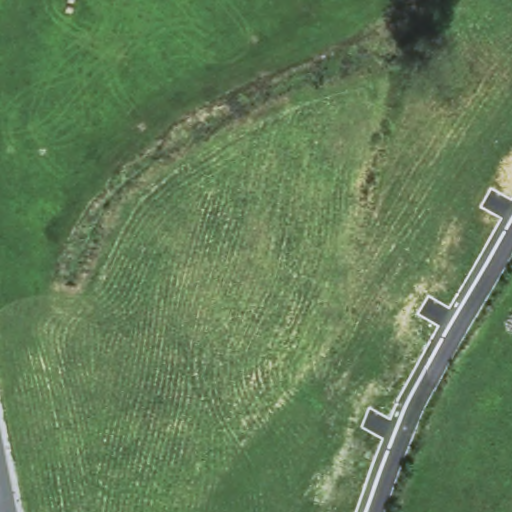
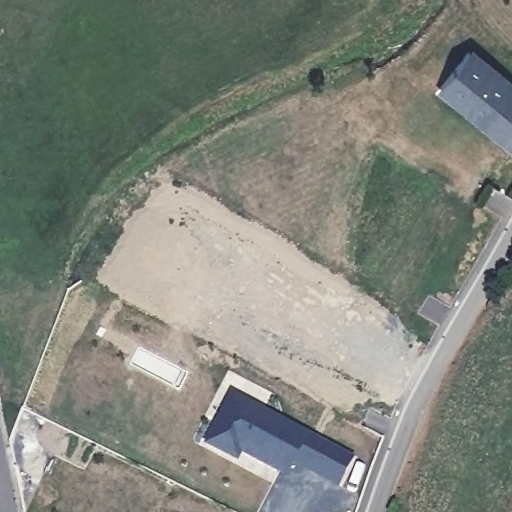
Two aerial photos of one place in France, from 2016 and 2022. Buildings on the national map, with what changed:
new [(470,56),(512,92),(512,120),(506,127),(495,117),(486,128),(485,129),(441,91),(470,56)]
new [(495,117),(506,127),(512,120),(512,148),(511,149),(486,128),(495,117)]
new [(224,459),(201,447),(227,398),(303,438),(301,442),(345,466),(331,492),(287,469),(282,478),(238,455),(233,463),(224,459)]

